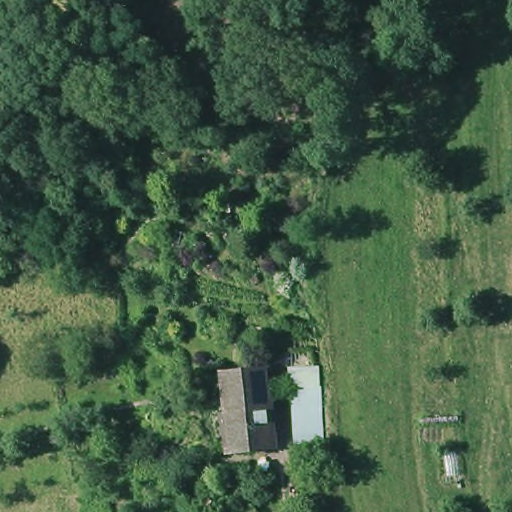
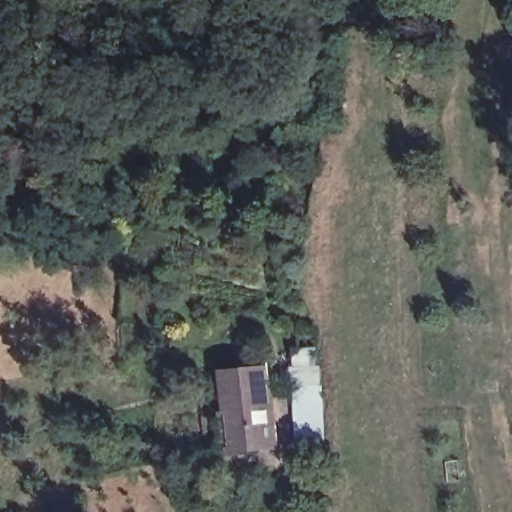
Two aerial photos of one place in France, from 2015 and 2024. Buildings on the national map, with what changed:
unchanged [(291,370),(323,370),(330,445),(299,449),(291,370)]
unchanged [(263,381),(273,455),(232,460),(223,386),(263,381)]

